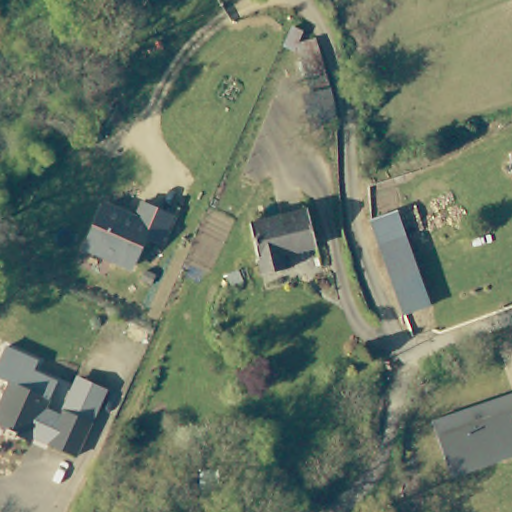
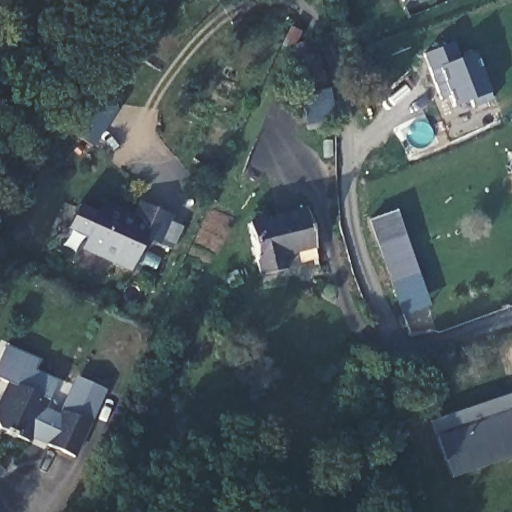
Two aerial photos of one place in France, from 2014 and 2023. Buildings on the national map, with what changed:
new [(402,0),(409,0),(403,2),(402,0)]
new [(453,42),(458,62),(475,53),(490,92),(453,108),(448,96),(440,99),(423,55),(453,42)]
unchanged [(308,93),(326,88),(328,112),(305,119),(308,93)]
unchanged [(128,261),(83,240),(102,198),(133,212),(141,196),(170,209),(158,236),(140,228),(128,261)]
unchanged [(316,240),(282,246),(283,259),(259,263),(251,211),(309,200),(316,240)]
unchanged [(403,221),(435,306),(409,316),(376,230),(372,221),(399,211),(403,221)]
unchanged [(80,416),(64,450),(37,437),(40,430),(25,422),(19,434),(4,426),(2,430),(0,429),(0,341),(28,354),(24,364),(47,375),(34,402),(50,410),(53,403),(66,376),(93,389),(80,416)]
unchanged [(483,401),(512,392),(512,408),(488,416),(484,402),(483,401)]
unchanged [(445,477),(426,420),(484,402),(488,416),(512,408),(512,456),(445,477)]

